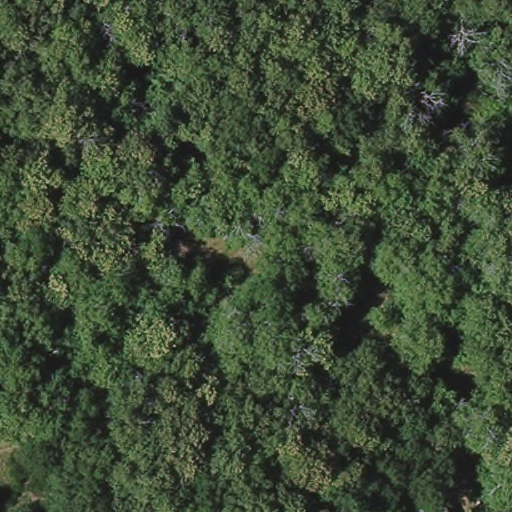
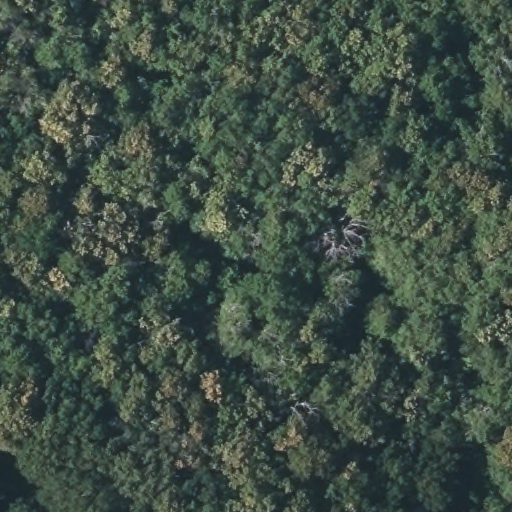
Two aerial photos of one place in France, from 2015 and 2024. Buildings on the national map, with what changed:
unchanged [(446,512),(409,512),(445,500),(446,512)]

